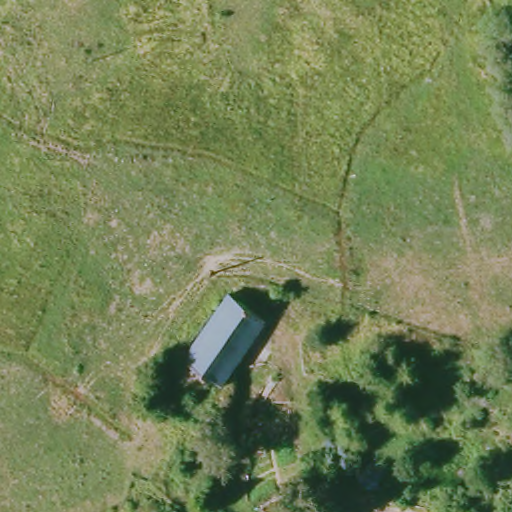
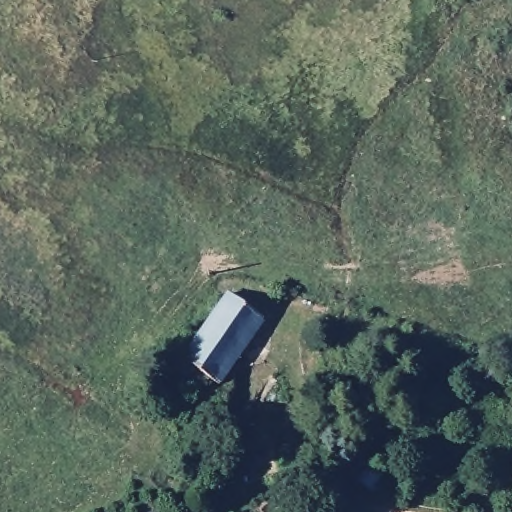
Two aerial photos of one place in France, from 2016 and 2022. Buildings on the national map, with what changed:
unchanged [(211,388),(175,362),(223,296),(260,322),(211,388)]

